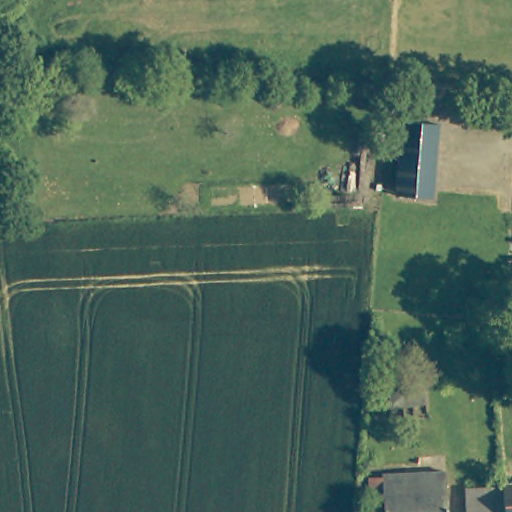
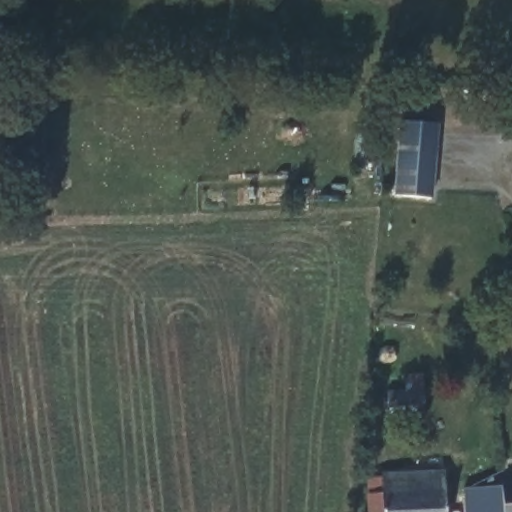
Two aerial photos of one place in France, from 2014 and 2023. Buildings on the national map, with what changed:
unchanged [(427,194),(394,191),(400,116),(434,119),(427,194)]
unchanged [(422,390),(423,404),(391,406),(390,392),(422,390)]
unchanged [(447,512),(375,512),(373,479),(383,479),(383,476),(446,473),(447,512)]
unchanged [(504,512),(503,489),(503,481),(512,481),(512,512),(504,512)]
unchanged [(504,512),(465,512),(464,489),(503,489),(504,512)]

